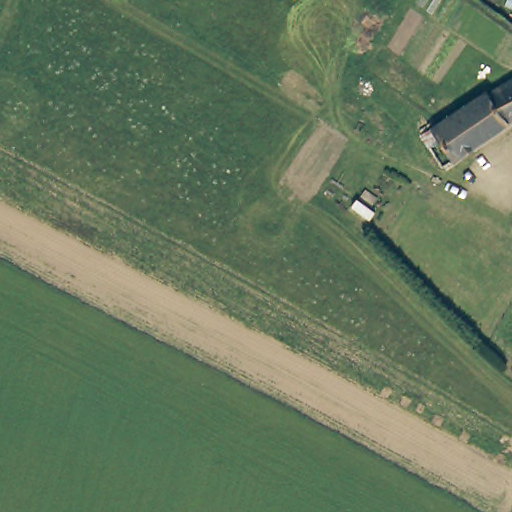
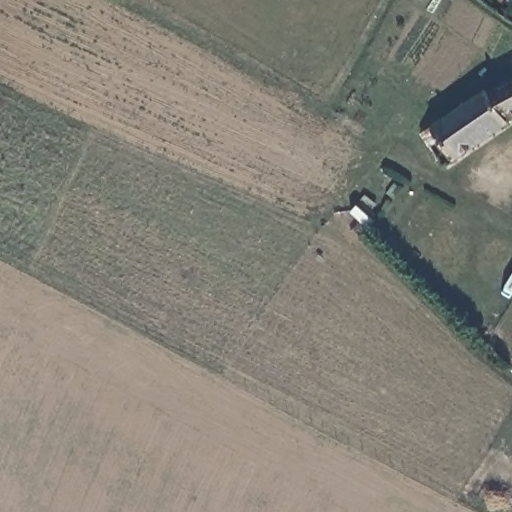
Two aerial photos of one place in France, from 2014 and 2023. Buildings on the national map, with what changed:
unchanged [(495,85),(500,90),(512,81),(512,121),(450,164),(428,131),(495,85)]

